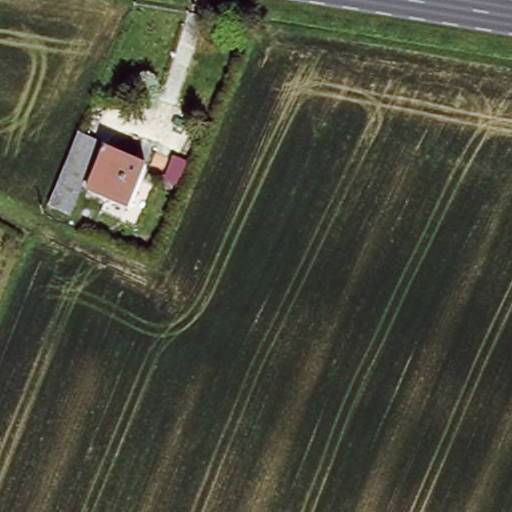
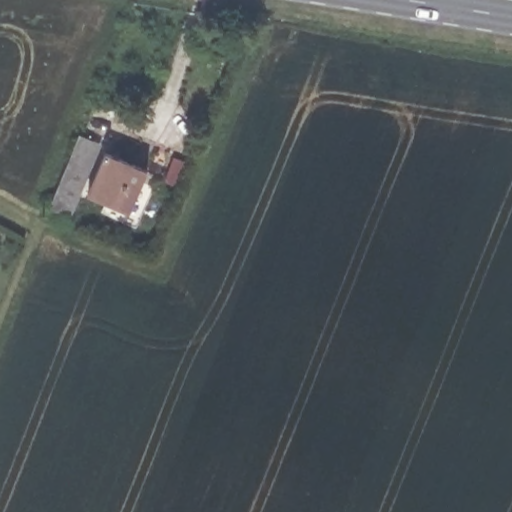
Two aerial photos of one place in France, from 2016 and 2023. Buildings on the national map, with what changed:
unchanged [(76,134),(96,143),(67,214),(47,206),(76,134)]
unchanged [(107,159),(150,175),(135,213),(92,197),(107,159)]

